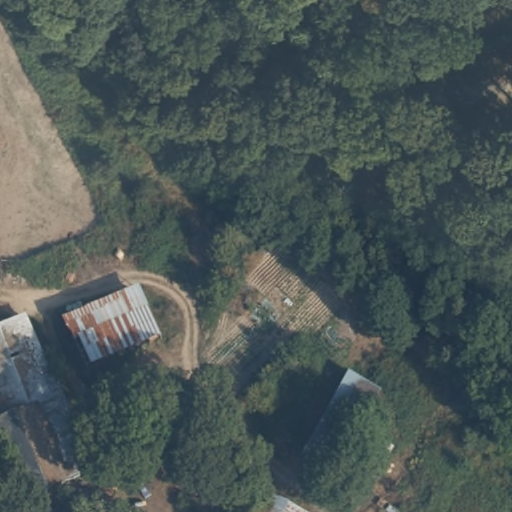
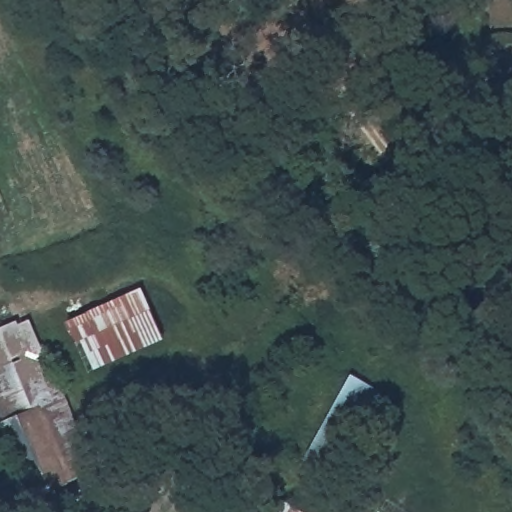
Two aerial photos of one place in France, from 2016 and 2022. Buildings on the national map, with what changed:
unchanged [(88,371),(65,323),(143,285),(165,334),(88,371)]
unchanged [(27,312),(55,377),(0,403),(0,324),(27,312)]
unchanged [(348,370),(385,390),(330,483),(295,461),(348,370)]
unchanged [(38,497),(8,427),(0,431),(0,403),(55,377),(98,468),(69,482),(38,497)]
unchanged [(115,491),(104,480),(119,465),(130,477),(115,491)]
unchanged [(275,488),(314,511),(313,512),(263,512),(275,488)]

